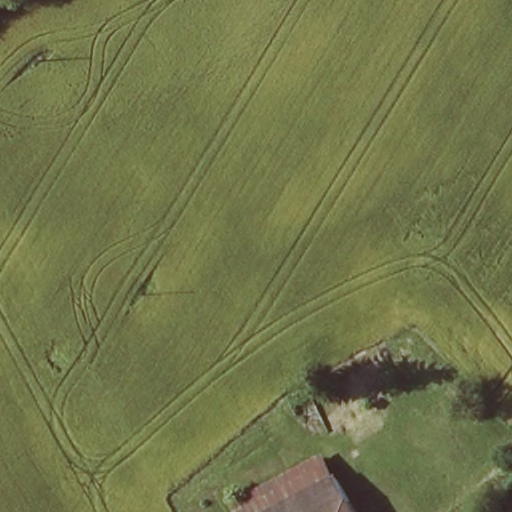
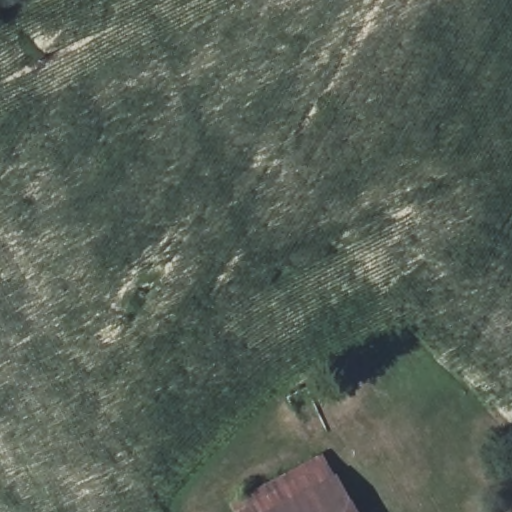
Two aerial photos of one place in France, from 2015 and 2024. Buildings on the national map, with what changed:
unchanged [(332,512),(276,512),(336,478),(349,503),(332,512)]
unchanged [(349,503),(354,512),(332,512),(349,503)]

